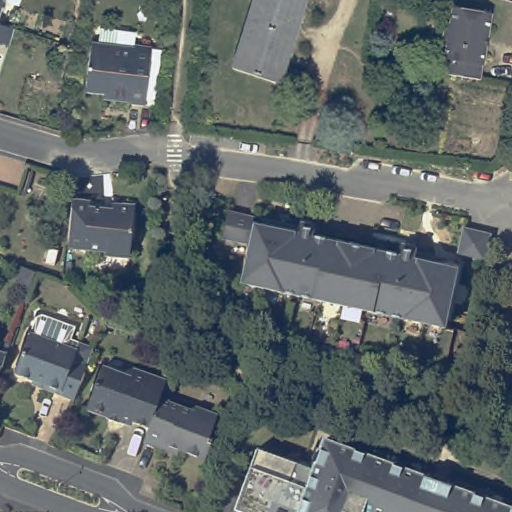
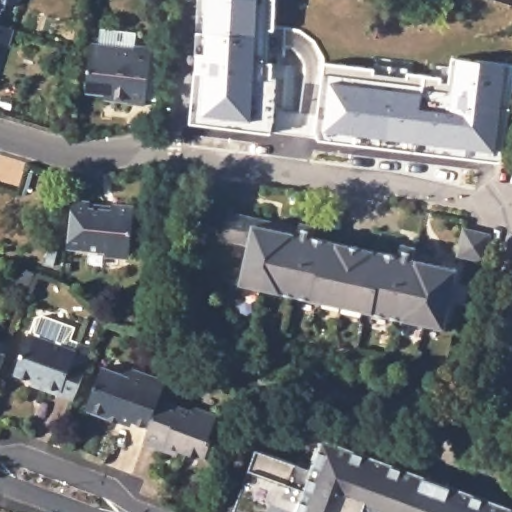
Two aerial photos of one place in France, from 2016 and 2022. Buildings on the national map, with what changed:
unchanged [(1,7),(0,11),(0,0),(6,0),(4,7),(1,7)]
new [(195,32),(197,32),(198,0),(276,0),(275,29),(281,30),(278,62),(272,63),(271,76),(275,76),(273,121),(271,132),(190,123),(195,32)]
demolished [(234,67),(254,0),(307,0),(281,82),(234,67)]
demolished [(443,59),(439,59),(441,45),(437,40),(440,27),(445,24),(447,8),(487,14),(480,66),(478,65),(475,79),(445,74),(441,74),(443,59)]
unchanged [(0,42),(0,25),(12,28),(7,44),(0,42)]
unchanged [(128,103),(129,101),(111,100),(112,94),(86,91),(91,43),(99,43),(100,28),(136,32),(135,45),(152,46),(151,50),(157,50),(155,70),(150,69),(145,105),(128,103)]
new [(505,165),(480,163),(480,159),(465,157),(463,167),(447,165),(447,157),(343,142),(342,145),(314,140),(323,74),(318,74),(320,60),(441,77),(441,65),(452,67),(454,56),(512,64),(512,115),(505,165)]
unchanged [(105,255),(105,251),(67,247),(72,199),(90,201),(90,204),(105,205),(105,208),(112,209),(112,203),(135,205),(130,257),(105,255)]
unchanged [(457,263),(444,322),(241,277),(249,239),(222,233),(228,206),(258,213),(256,219),(298,228),(300,217),(315,220),(313,231),(398,250),(401,239),(416,242),(413,253),(457,263)]
unchanged [(485,261),(457,255),(463,228),(465,228),(490,234),(485,261)]
unchanged [(178,326),(169,329),(165,313),(174,311),(178,326)]
unchanged [(42,388),(44,384),(14,373),(30,332),(75,349),(78,342),(93,348),(74,399),(42,388)]
unchanged [(0,368),(0,352),(5,354),(0,368)]
unchanged [(110,413),(109,418),(86,409),(102,366),(122,373),(132,368),(166,381),(160,399),(149,427),(110,413)]
unchanged [(167,444),(166,449),(144,441),(149,427),(160,399),(190,410),(195,406),(217,415),(209,437),(212,439),(205,458),(167,444)]
unchanged [(251,448),(307,469),(318,439),(423,477),(442,484),(512,510),(512,512),(235,512),(230,510),(251,448)]

